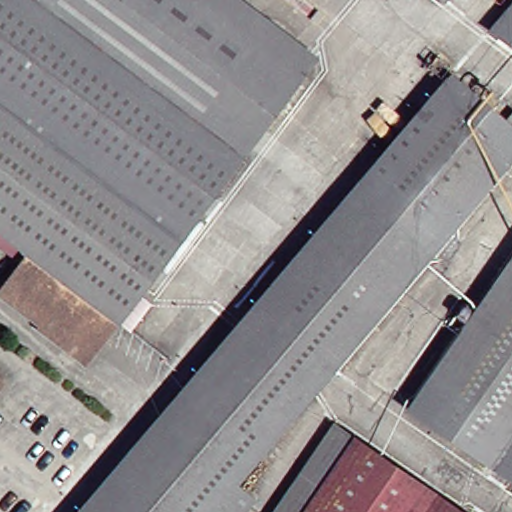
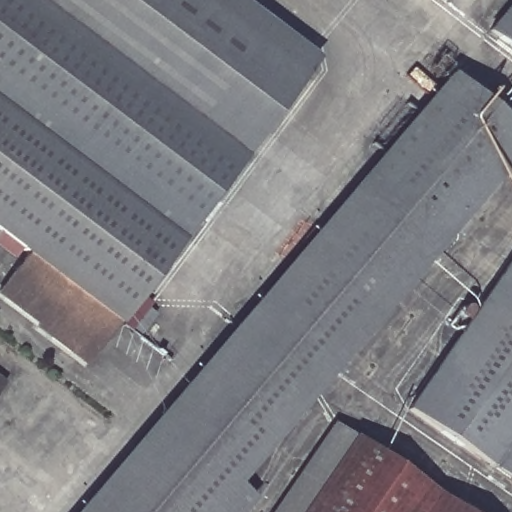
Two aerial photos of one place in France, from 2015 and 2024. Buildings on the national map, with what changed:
unchanged [(131,300),(140,307),(125,325),(116,319),(114,323),(110,320),(83,357),(71,348),(67,353),(39,332),(40,329),(34,324),(0,297),(0,284),(22,254),(16,249),(9,257),(0,250),(0,0),(205,0),(302,73),(131,300)]
unchanged [(437,0),(440,0),(438,1),(437,0)]
unchanged [(511,0),(512,0),(512,49),(485,30),(511,0)]
unchanged [(495,119),(503,108),(512,115),(512,148),(226,483),(245,499),(233,512),(69,512),(442,74),(495,119)]
unchanged [(512,251),(512,485),(402,409),(512,251)]
unchanged [(328,423),(459,512),(268,512),(328,423)]

